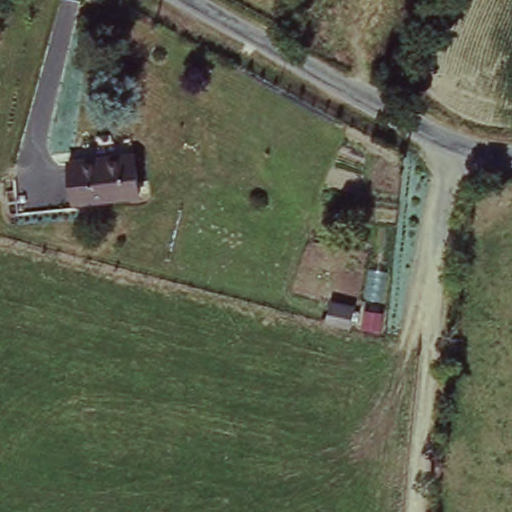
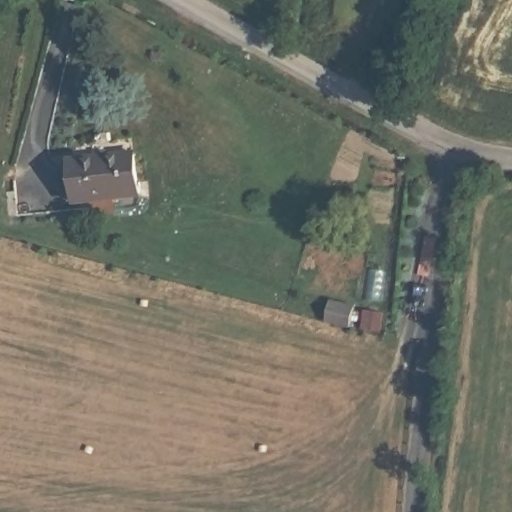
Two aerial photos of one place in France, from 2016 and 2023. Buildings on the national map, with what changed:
unchanged [(63,164),(120,156),(126,202),(69,209),(63,164)]
unchanged [(368,267),(370,248),(388,251),(386,269),(368,267)]

